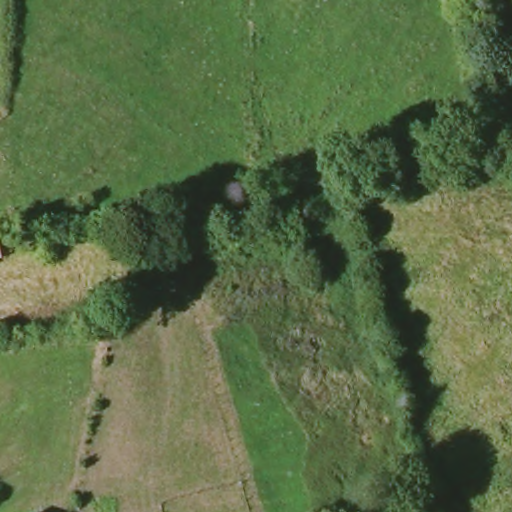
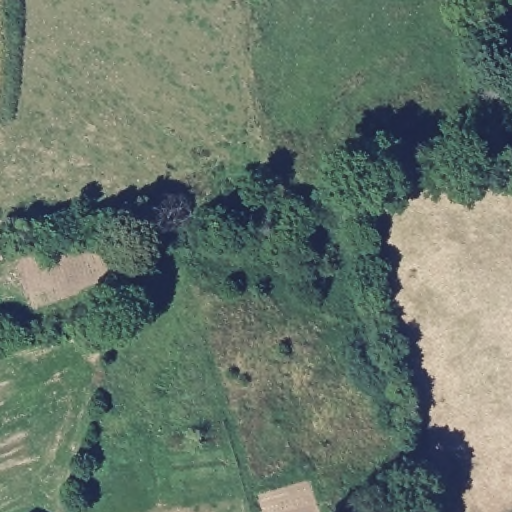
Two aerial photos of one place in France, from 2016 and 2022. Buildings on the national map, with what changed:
unchanged [(5,237),(7,238),(10,240),(12,242),(13,244),(13,247),(11,250),(10,252),(7,254),(2,255),(3,258),(0,259),(0,238),(5,237)]

